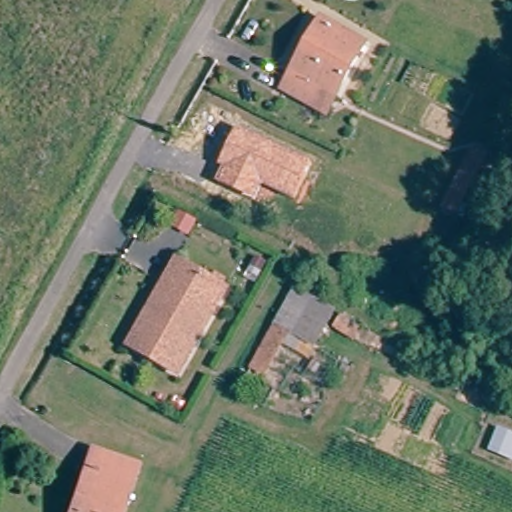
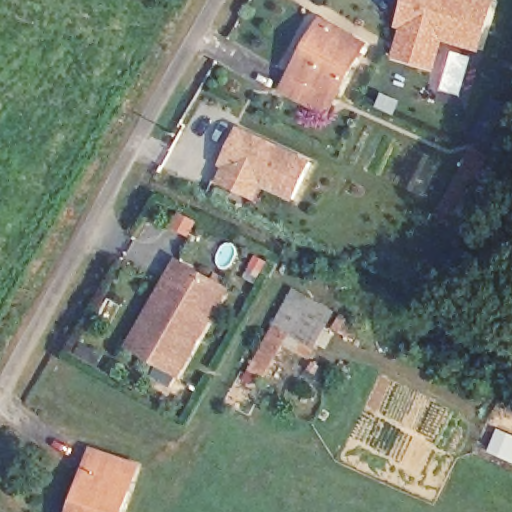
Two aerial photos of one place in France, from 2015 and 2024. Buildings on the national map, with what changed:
new [(483,52),(444,40),(435,72),(392,58),(400,29),(395,27),(404,0),(496,0),(497,0),(483,52)]
unchanged [(325,117),(284,95),(323,22),(364,44),(325,117)]
new [(512,104),(512,150),(511,152),(474,134),(494,95),(512,104)]
unchanged [(311,162),(293,199),(261,184),(254,199),(215,181),(222,165),(218,163),(237,126),(311,162)]
unchanged [(471,140),(487,149),(456,207),(439,198),(471,140)]
unchanged [(155,354),(135,341),(124,335),(163,268),(174,251),(203,268),(206,263),(222,272),(219,278),(223,280),(180,353),(173,364),(155,354)]
unchanged [(310,346),(304,357),(282,345),(267,374),(252,366),(294,289),(309,297),(288,335),(310,346)]
unchanged [(331,309),(310,346),(288,335),(309,297),(331,309)]
unchanged [(512,431),(512,459),(484,445),(495,423),(512,431)]
unchanged [(124,512),(75,512),(94,456),(138,471),(124,512)]

